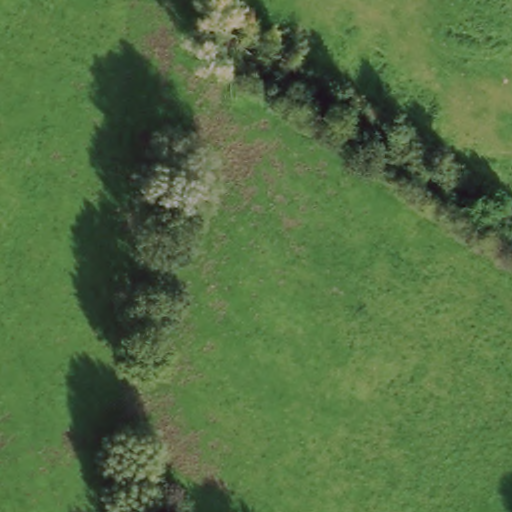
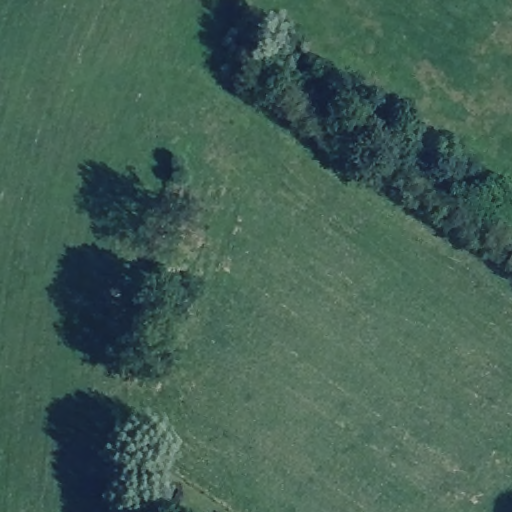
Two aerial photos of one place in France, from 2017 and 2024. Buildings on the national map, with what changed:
unchanged [(491,220),(504,232),(495,242),(482,230),(491,220)]

